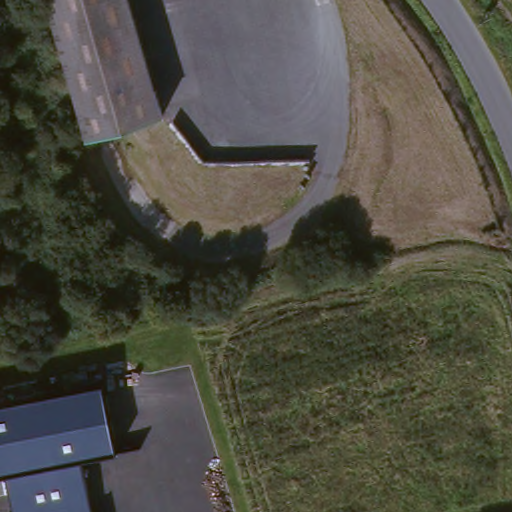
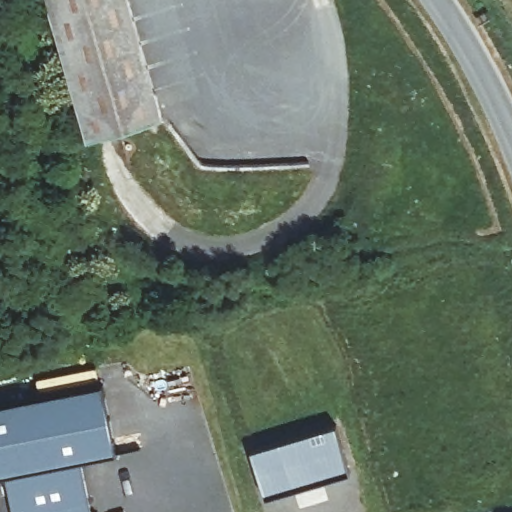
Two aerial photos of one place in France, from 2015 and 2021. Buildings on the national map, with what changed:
unchanged [(48,0),(127,0),(162,119),(89,140),(48,0)]
unchanged [(0,475),(0,405),(103,385),(116,451),(81,460),(91,512),(14,512),(6,474),(0,475)]
new [(337,422),(351,471),(264,497),(250,449),(337,422)]

